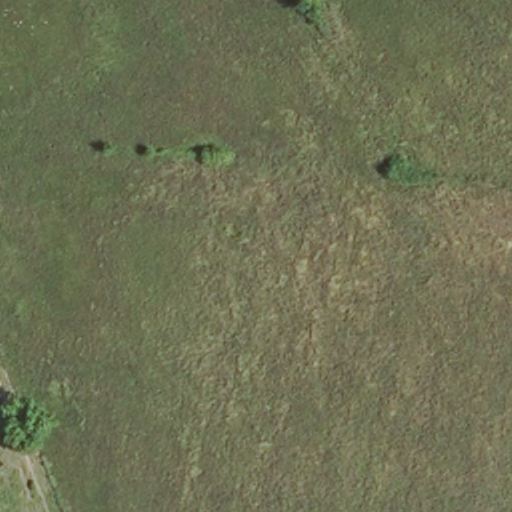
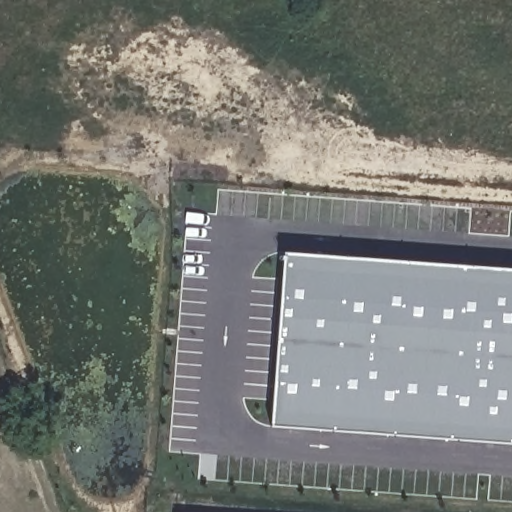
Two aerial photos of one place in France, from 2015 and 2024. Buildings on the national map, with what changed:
new [(512,268),(512,443),(270,425),(283,252),(512,268)]

